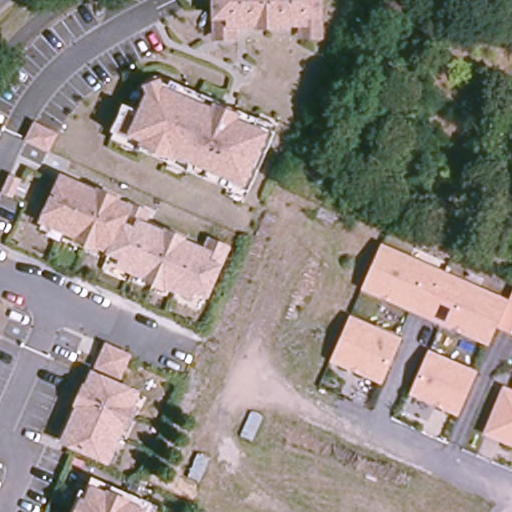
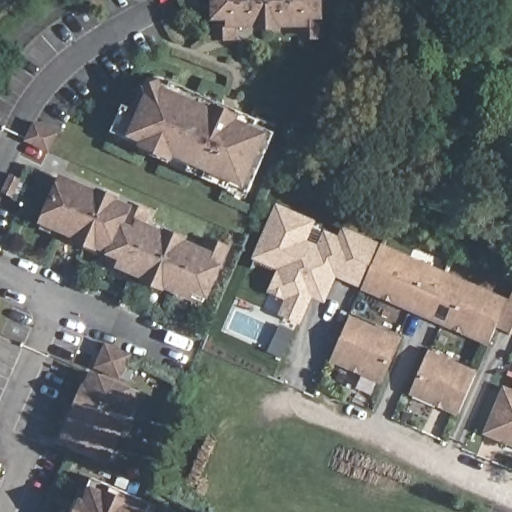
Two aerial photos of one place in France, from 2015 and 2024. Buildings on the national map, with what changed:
unchanged [(316,20),(322,40),(295,42),(292,29),(234,30),(235,40),(212,41),(209,0),(324,0),(326,20),(316,20)]
unchanged [(145,89),(167,81),(251,118),(276,131),(247,195),(192,175),(194,169),(174,160),(172,164),(140,151),(141,145),(112,132),(122,106),(137,112),(145,89)]
demolished [(47,195),(20,186),(35,155),(62,166),(47,195)]
unchanged [(129,213),(112,255),(43,225),(64,178),(132,205),(129,213)]
new [(336,277),(325,303),(312,297),(301,325),(279,314),(286,300),(268,291),(277,268),(252,258),(275,203),(316,220),(308,240),(317,245),(324,230),(338,236),(343,226),(379,244),(360,286),(336,277)]
unchanged [(203,246),(208,236),(230,246),(222,265),(202,306),(109,264),(112,255),(129,213),(203,246)]
unchanged [(379,244),(507,298),(496,327),(488,347),(358,290),(379,244)]
unchanged [(507,298),(510,299),(512,295),(512,335),(496,327),(507,298)]
unchanged [(382,383),(328,361),(350,314),(402,336),(382,383)]
unchanged [(140,395),(108,460),(65,442),(105,345),(130,356),(118,383),(140,395)]
unchanged [(458,417),(407,394),(427,350),(477,371),(458,417)]
unchanged [(483,434),(503,385),(512,389),(512,446),(483,434)]
unchanged [(149,512),(77,512),(92,479),(152,505),(149,512)]

